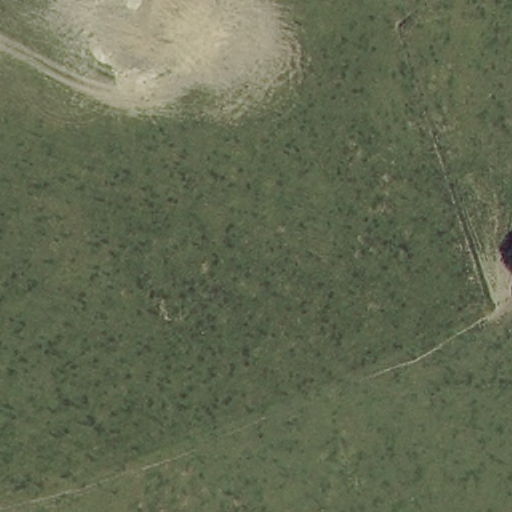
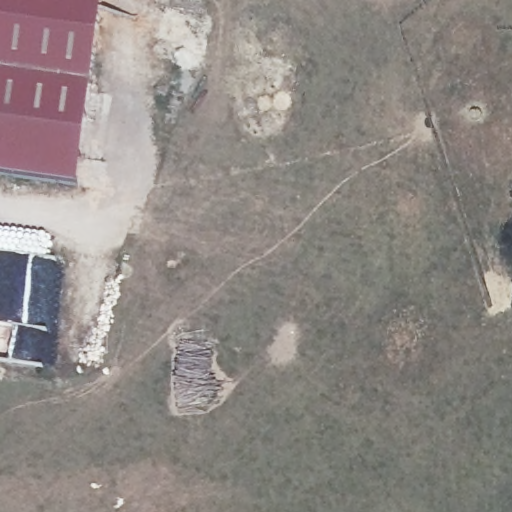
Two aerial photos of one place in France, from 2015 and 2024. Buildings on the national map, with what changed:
new [(0,177),(0,0),(102,0),(77,188),(0,177)]

